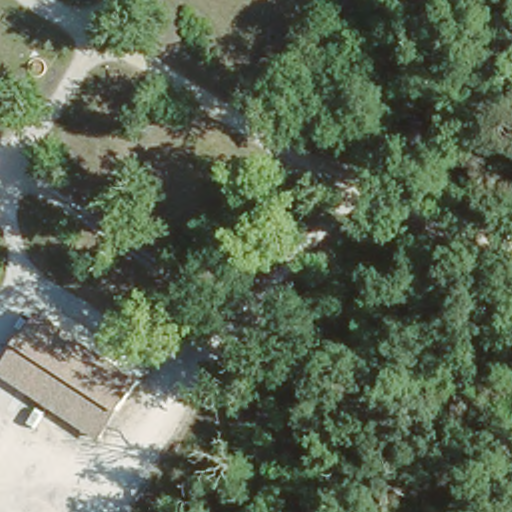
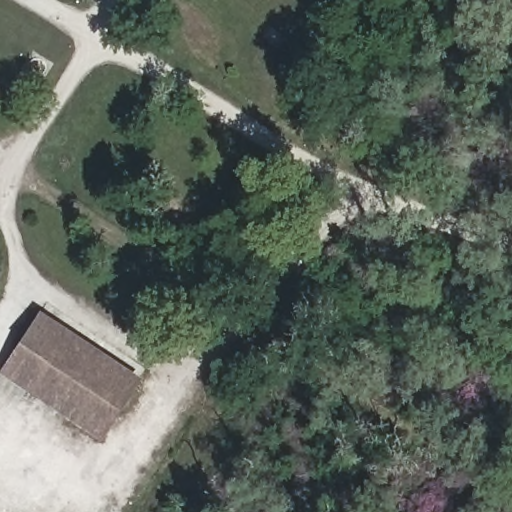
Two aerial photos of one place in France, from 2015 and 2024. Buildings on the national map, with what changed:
unchanged [(143,381),(103,444),(2,377),(41,312),(143,381)]

